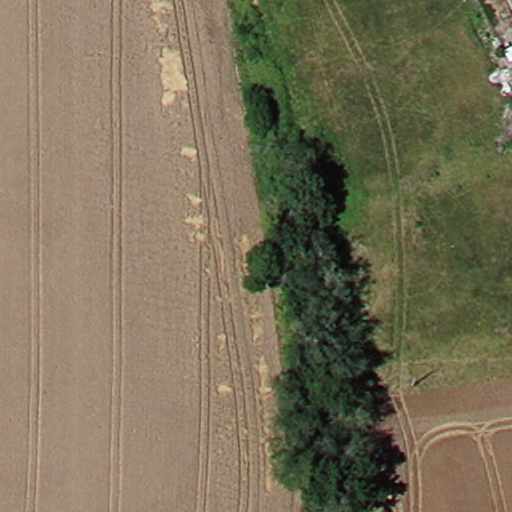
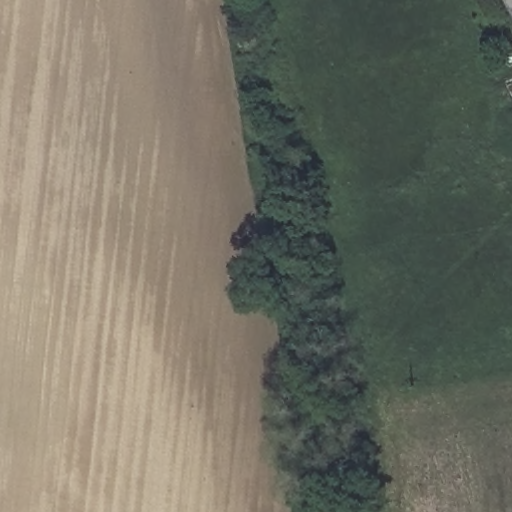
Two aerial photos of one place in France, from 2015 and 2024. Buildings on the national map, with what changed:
unchanged [(512,19),(503,0),(512,0),(512,19)]

